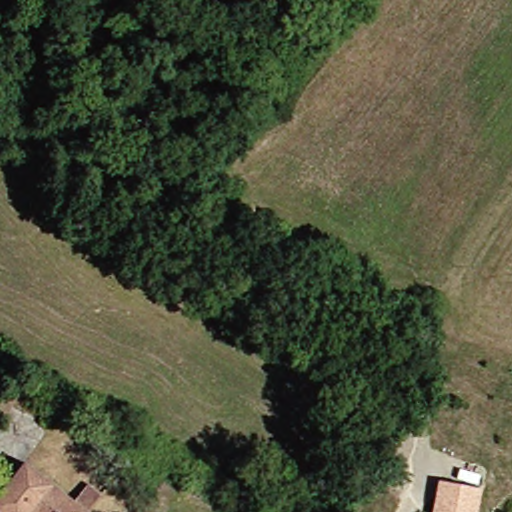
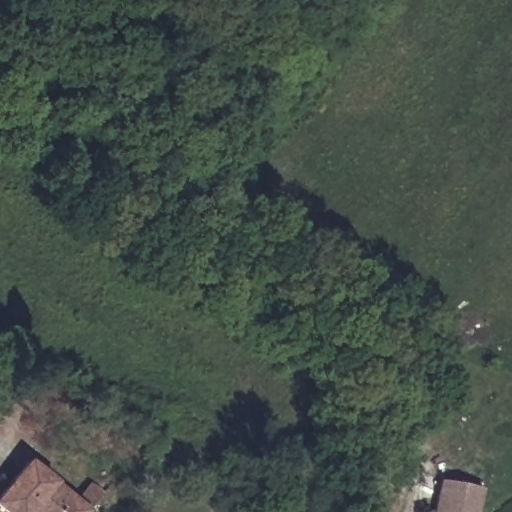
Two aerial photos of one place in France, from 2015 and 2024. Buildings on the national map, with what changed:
unchanged [(69,504),(83,486),(96,496),(84,512),(0,512),(0,492),(20,466),(69,504)]
unchanged [(438,482),(479,491),(476,512),(432,512),(438,482)]

